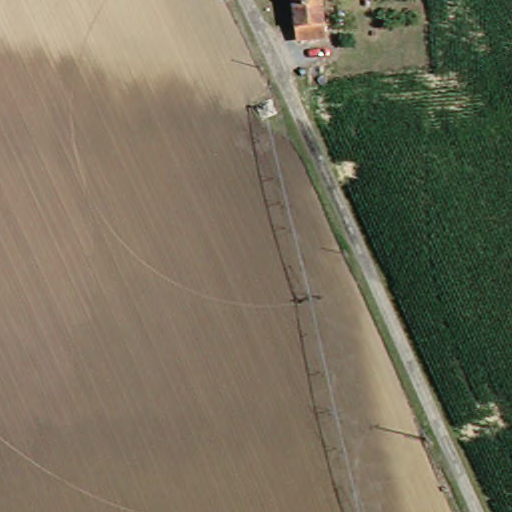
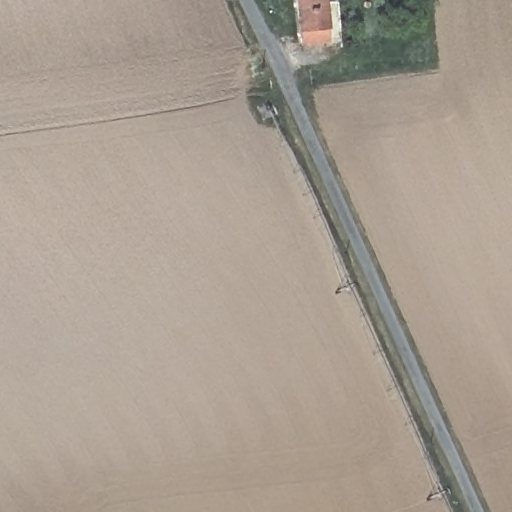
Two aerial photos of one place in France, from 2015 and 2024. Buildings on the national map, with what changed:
unchanged [(303,34),(299,0),(323,0),(327,31),(327,41),(303,40),(303,34)]

